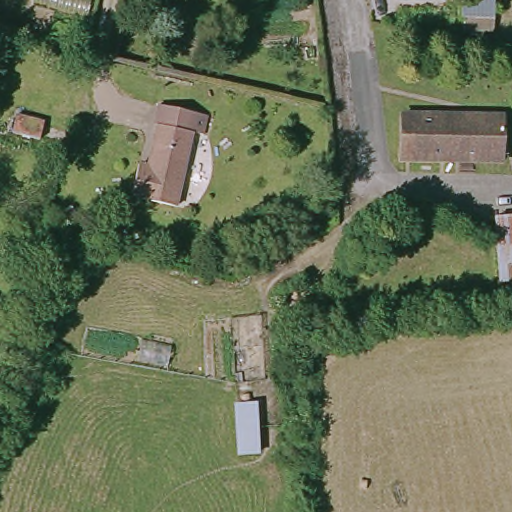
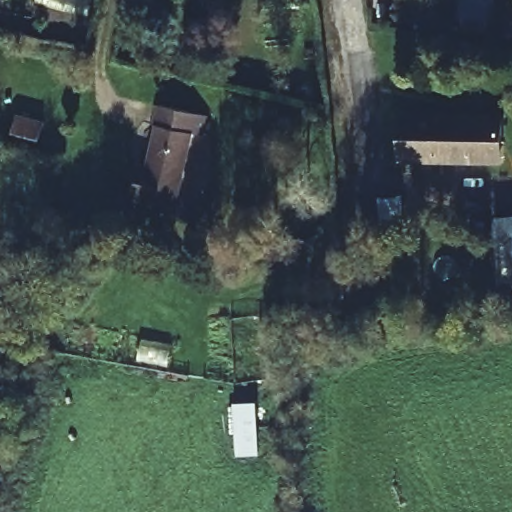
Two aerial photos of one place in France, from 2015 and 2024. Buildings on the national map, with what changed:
unchanged [(461,16),(462,0),(495,0),(494,17),(494,32),(464,30),(465,17),(461,16)]
unchanged [(148,159),(158,119),(153,117),(157,99),(161,100),(208,111),(203,129),(193,127),(176,201),(131,191),(136,169),(138,157),(148,159)]
unchanged [(401,157),(401,114),(502,116),(502,160),(401,157)]
unchanged [(402,195),(404,222),(384,229),(381,197),(402,195)]
unchanged [(493,258),(489,217),(512,215),(512,262),(493,258)]
unchanged [(39,334),(49,337),(43,358),(33,355),(39,334)]

